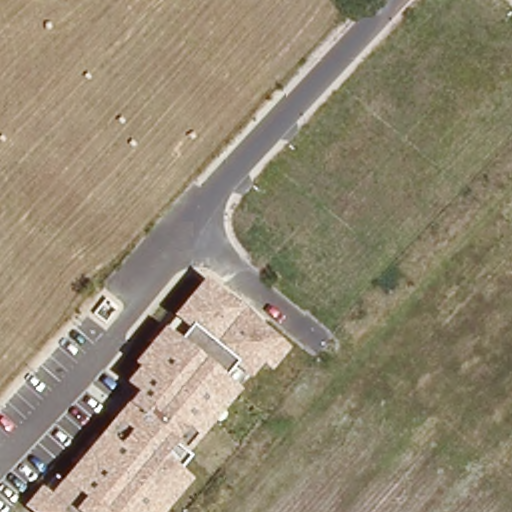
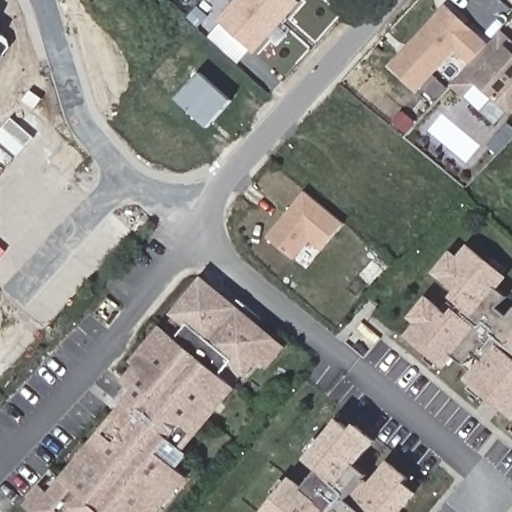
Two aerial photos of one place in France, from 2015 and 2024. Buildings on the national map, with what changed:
new [(256,54),(217,20),(235,0),(298,0),(302,3),(256,54)]
new [(482,48),(463,69),(448,55),(410,96),(382,70),(439,8),(482,48)]
new [(0,22),(0,20),(1,20),(0,22)]
new [(509,113),(497,103),(476,84),(462,98),(450,87),(504,31),(512,39),(512,110),(509,113)]
new [(0,42),(0,32),(5,36),(0,42)]
new [(0,61),(0,52),(5,56),(0,61)]
new [(199,74),(230,103),(205,129),(174,101),(199,74)]
new [(305,191),(343,223),(321,250),(310,241),(294,260),(267,237),(305,191)]
new [(466,379),(483,359),(474,353),(463,365),(456,358),(446,369),(406,335),(415,324),(409,317),(429,296),(449,313),(454,309),(458,304),(451,297),(456,292),(435,273),(454,251),(460,256),(469,245),(508,276),(498,288),(508,297),(498,307),(508,317),(512,313),(512,419),(466,379)]
unchanged [(270,370),(260,362),(184,454),(188,457),(180,470),(190,477),(161,512),(33,512),(25,505),(42,485),(51,493),(134,391),(124,383),(138,367),(133,363),(162,326),(177,340),(188,327),(173,316),(204,279),(287,348),(270,370)]
new [(370,475),(367,478),(372,483),(392,461),(411,476),(406,482),(419,492),(402,512),(264,512),(294,477),(306,487),(321,470),(308,460),(341,419),(353,430),(358,424),(378,441),(359,466),(370,475)]

